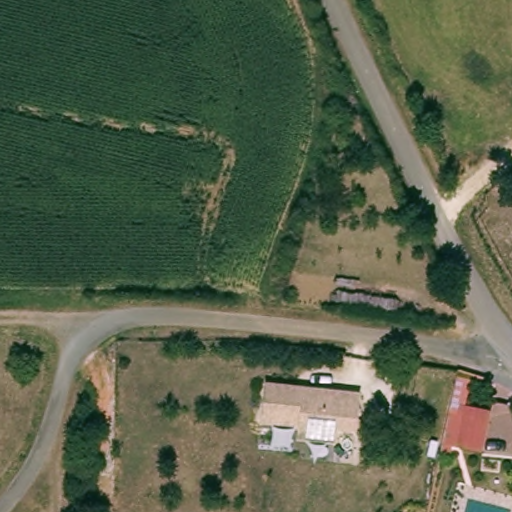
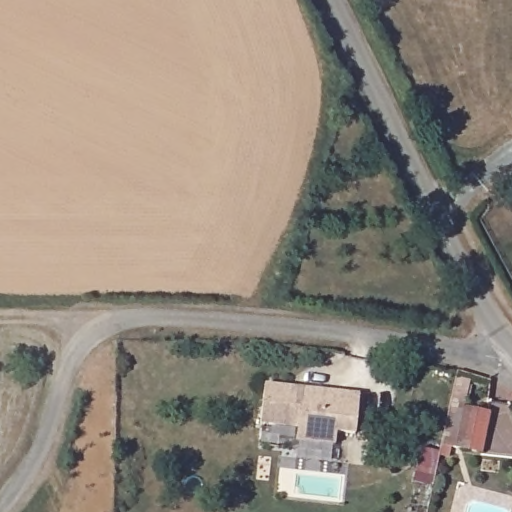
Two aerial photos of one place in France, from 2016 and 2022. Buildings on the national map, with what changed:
unchanged [(325,393),(341,395),(361,397),(356,437),(337,435),(336,447),(318,445),(297,442),(299,430),(262,425),(267,385),(314,391),(325,393)]
unchanged [(468,410),(492,416),(482,457),(458,452),(468,410)]

